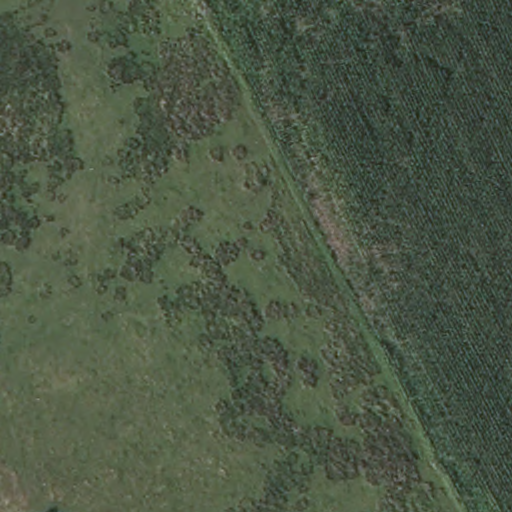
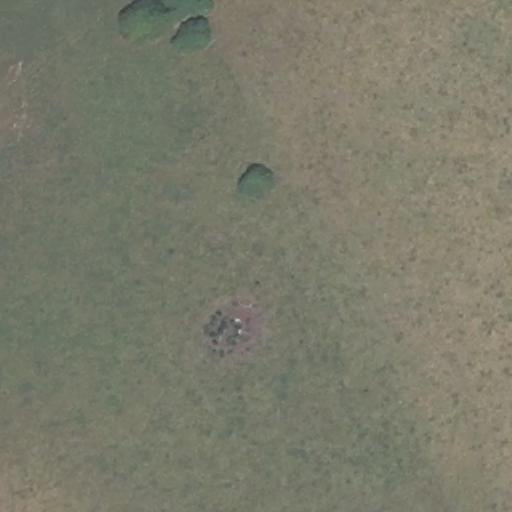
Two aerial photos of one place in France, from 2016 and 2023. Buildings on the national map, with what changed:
[]

